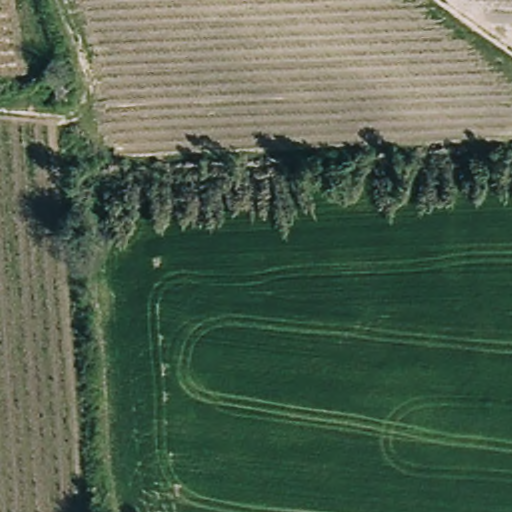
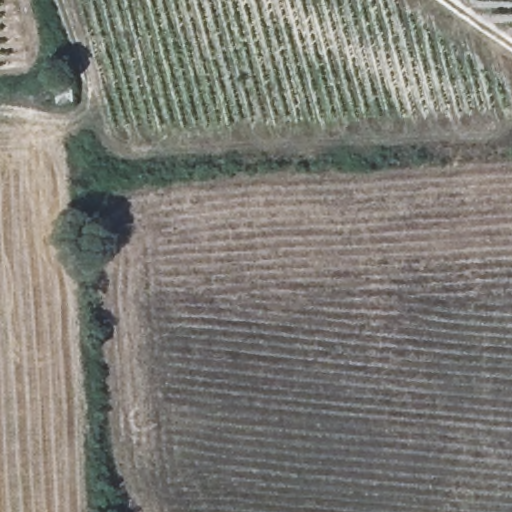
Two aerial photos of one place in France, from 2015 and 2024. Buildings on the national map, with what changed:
unchanged [(55,75),(73,73),(74,102),(57,105),(55,75)]

